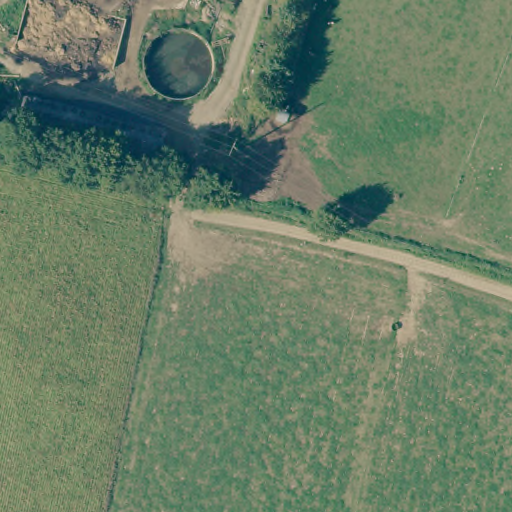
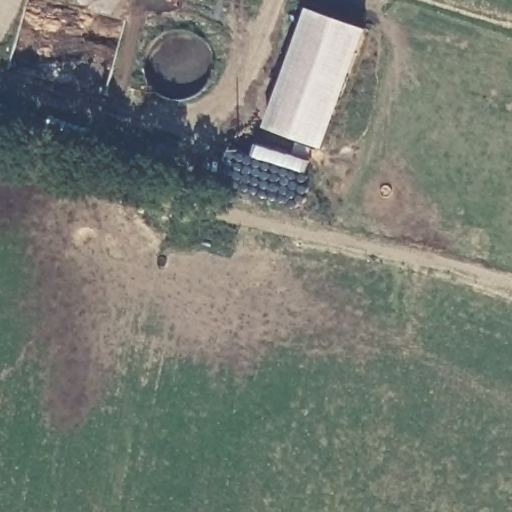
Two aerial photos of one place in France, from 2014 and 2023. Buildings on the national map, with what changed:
unchanged [(209,0),(212,0),(212,1),(209,0)]
new [(325,149),(265,128),(308,8),(368,29),(325,149)]

